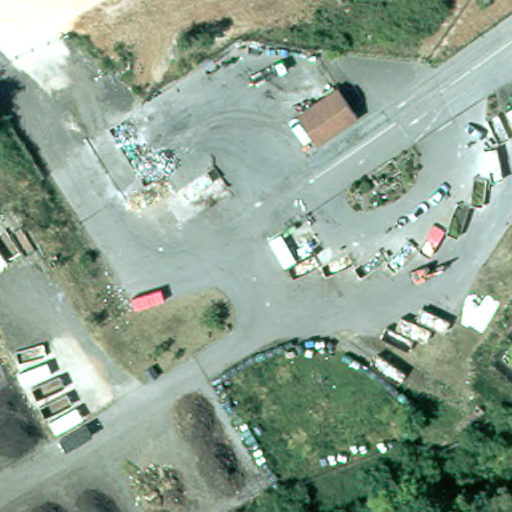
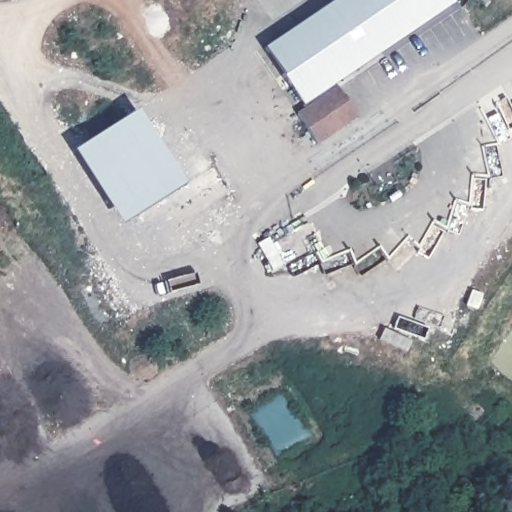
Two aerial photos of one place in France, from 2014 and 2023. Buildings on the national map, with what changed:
new [(303,106),(264,49),(335,0),(449,0),(452,5),(303,106)]
unchanged [(341,86),(362,121),(322,143),(300,112),(341,86)]
new [(137,111),(184,186),(122,225),(75,151),(137,111)]

